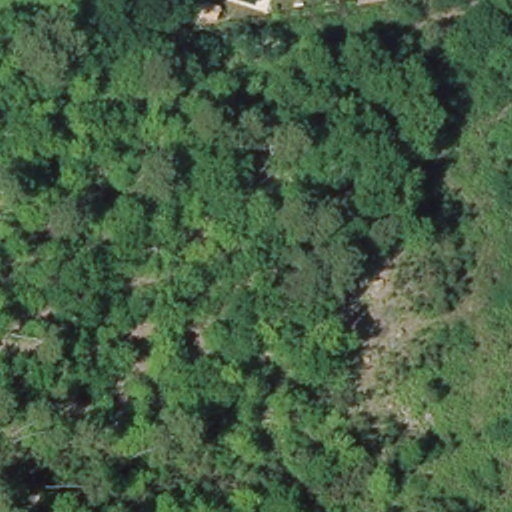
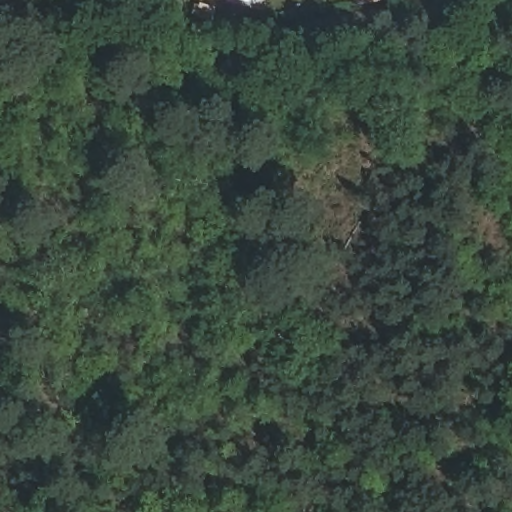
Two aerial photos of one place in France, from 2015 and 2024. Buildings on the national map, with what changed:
unchanged [(356,6),(356,0),(388,0),(388,6),(356,6)]

